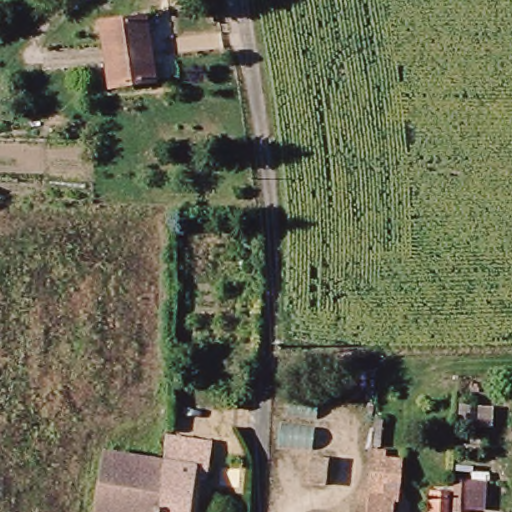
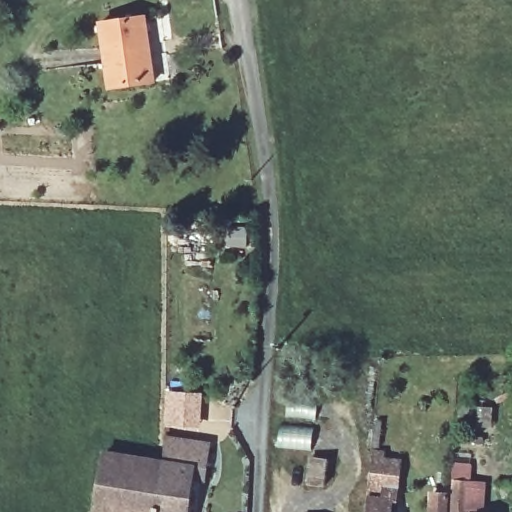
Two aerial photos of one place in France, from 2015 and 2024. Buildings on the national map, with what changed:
unchanged [(103,24),(146,19),(153,82),(110,86),(103,24)]
new [(169,395),(194,397),(192,427),(167,425),(169,395)]
unchanged [(204,442),(203,449),(199,477),(187,475),(183,512),(152,512),(160,466),(161,444),(161,437),(204,442)]
unchanged [(92,512),(102,455),(160,466),(152,512),(92,512)]
unchanged [(312,493),(316,466),(332,469),(328,496),(312,493)]
unchanged [(448,467),(466,467),(466,473),(484,474),(480,512),(428,512),(428,488),(447,489),(448,467)]

